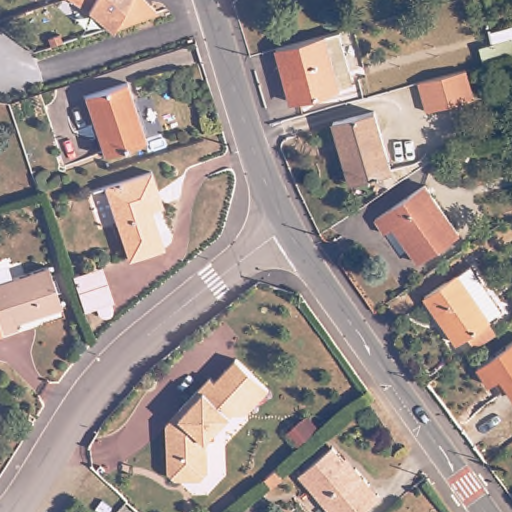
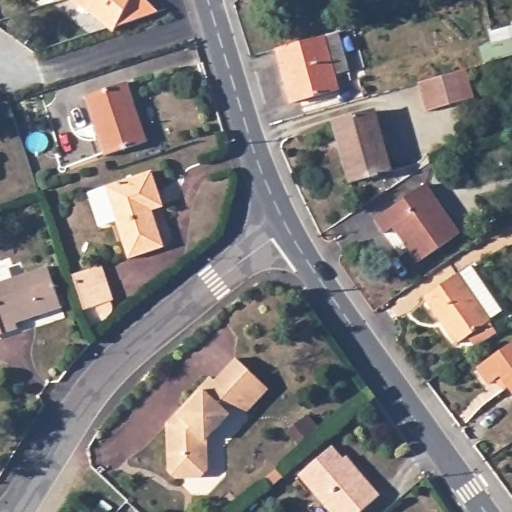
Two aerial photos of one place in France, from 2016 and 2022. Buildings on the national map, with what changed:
unchanged [(113,29),(111,28),(88,10),(70,0),(129,0),(115,26),(113,29)]
unchanged [(483,63),(479,44),(493,40),(491,29),(512,25),(512,55),(483,63)]
unchanged [(281,53),(343,36),(353,76),(338,79),(342,94),(296,106),(281,53)]
unchanged [(417,84),(455,74),(465,71),(473,100),(463,103),(425,113),(417,84)]
unchanged [(85,96),(126,83),(145,141),(104,154),(85,96)]
unchanged [(334,123),(373,112),(389,172),(350,182),(334,123)]
unchanged [(129,258),(105,188),(151,172),(158,194),(163,207),(152,210),(163,245),(129,258)]
unchanged [(374,219),(424,185),(437,203),(459,235),(418,263),(393,228),(385,234),(374,219)]
unchanged [(73,275),(101,265),(108,284),(105,285),(107,289),(107,291),(106,295),(102,299),(98,299),(95,298),(93,295),(90,290),(80,294),(73,275)]
unchanged [(60,307),(16,321),(17,327),(0,333),(0,282),(46,266),(60,307)]
unchanged [(479,347),(472,337),(462,343),(429,295),(461,274),(462,275),(475,268),(505,311),(492,320),(501,333),(479,347)]
unchanged [(490,384),(477,367),(512,342),(512,390),(510,387),(503,391),(495,379),(490,384)]
unchanged [(230,414),(206,442),(206,474),(201,481),(176,482),(168,474),(165,427),(178,413),(208,379),(212,384),(223,372),(233,360),(267,391),(252,407),(246,413),(230,414)]
unchanged [(360,512),(331,512),(298,474),(331,444),(342,459),(346,456),(356,467),(379,494),(360,512)]
unchanged [(96,509),(102,500),(112,508),(109,512),(100,512),(96,509)]

